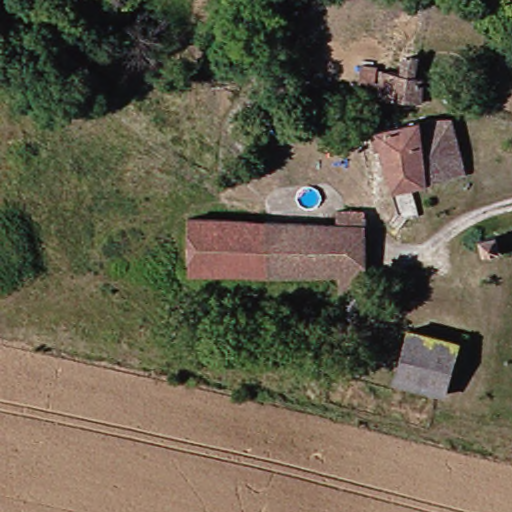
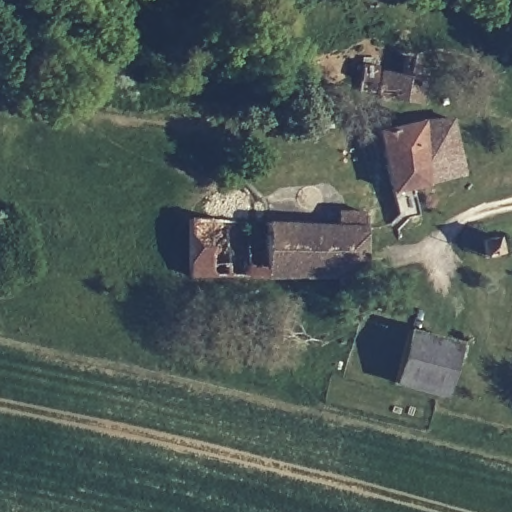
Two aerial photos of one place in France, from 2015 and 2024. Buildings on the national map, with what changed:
unchanged [(415,73),(422,75),(415,107),(375,99),(380,69),(398,72),(403,51),(419,58),(415,73)]
unchanged [(359,84),(341,79),(345,63),(363,66),(359,84)]
unchanged [(416,124),(449,122),(461,177),(387,195),(375,135),(416,124)]
unchanged [(257,224),(331,222),(331,210),(358,211),(360,294),(333,294),(332,277),(258,276),(257,224)]
unchanged [(181,276),(180,224),(257,224),(258,276),(181,276)]
unchanged [(495,263),(494,259),(479,261),(477,243),(512,238),(512,261),(495,263)]
unchanged [(457,349),(443,403),(393,388),(409,335),(457,349)]

